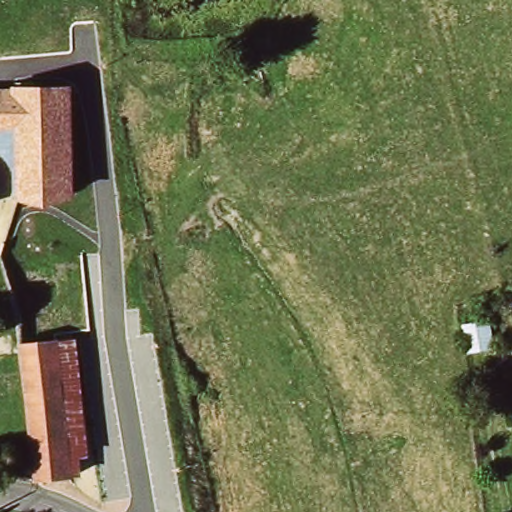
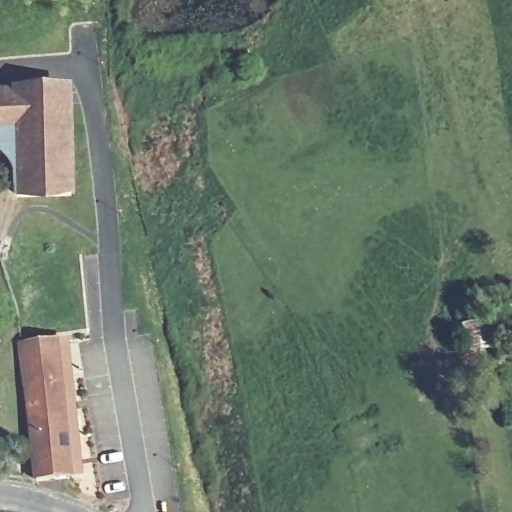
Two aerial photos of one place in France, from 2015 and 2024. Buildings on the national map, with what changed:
unchanged [(0,138),(0,90),(71,88),(73,201),(15,204),(13,138),(0,138)]
unchanged [(501,318),(504,348),(478,352),(472,323),(501,318)]
unchanged [(36,482),(31,429),(26,371),(23,346),(55,345),(54,335),(79,335),(79,345),(90,482),(36,482)]

